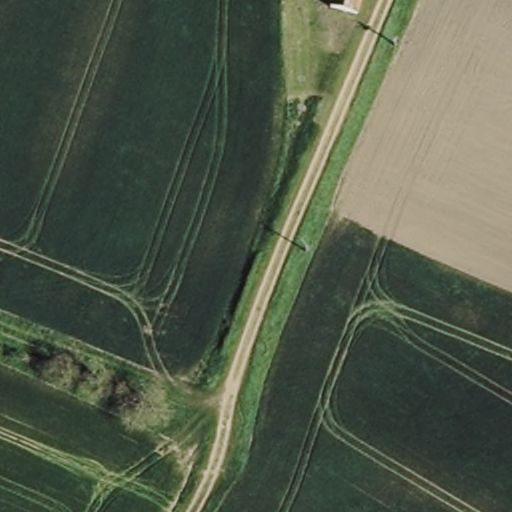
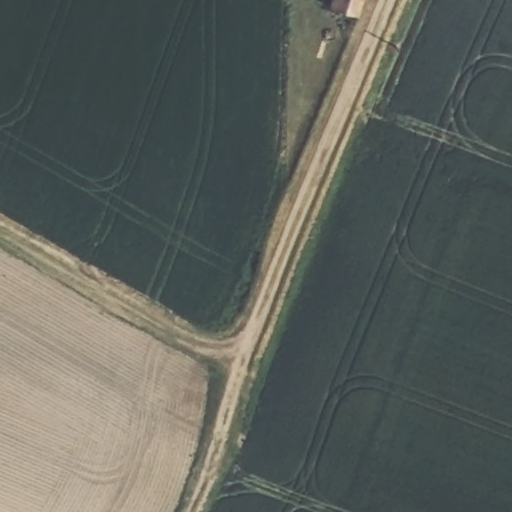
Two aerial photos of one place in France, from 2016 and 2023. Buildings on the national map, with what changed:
unchanged [(327,7),(331,0),(363,0),(356,19),(327,7)]

